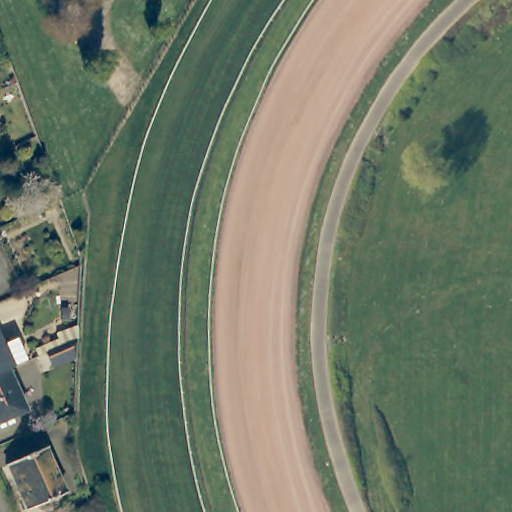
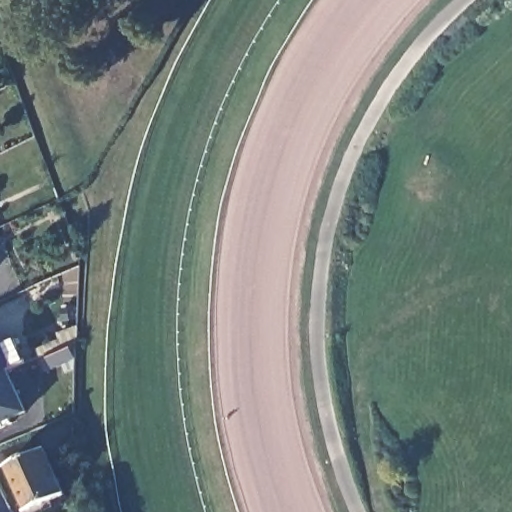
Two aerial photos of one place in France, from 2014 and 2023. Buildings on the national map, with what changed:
unchanged [(0,382),(0,346),(2,350),(15,343),(29,368),(10,377),(0,382)]
unchanged [(54,365),(36,373),(34,366),(50,358),(54,365)]
unchanged [(0,431),(0,382),(10,377),(27,418),(0,431)]
unchanged [(43,450),(63,494),(28,511),(8,467),(43,450)]

